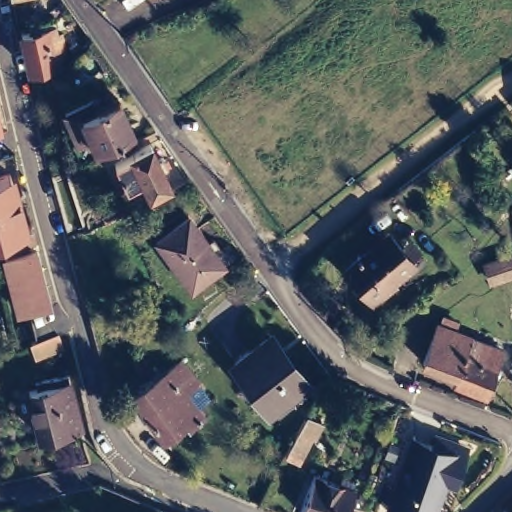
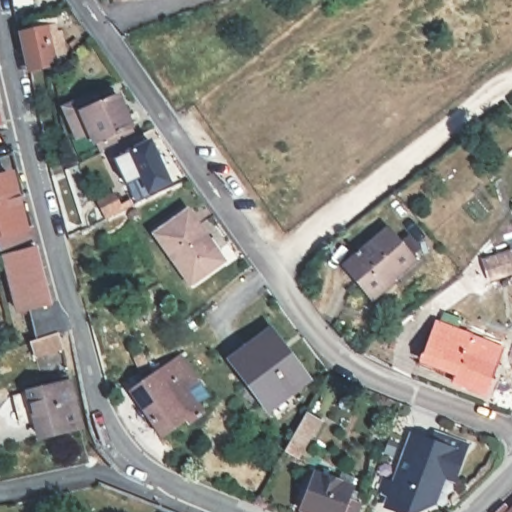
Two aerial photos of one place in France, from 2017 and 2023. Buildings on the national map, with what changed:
unchanged [(70,59),(68,64),(55,66),(30,70),(22,31),(33,28),(33,22),(46,19),(49,35),(65,31),(70,59)]
unchanged [(89,84),(92,94),(115,85),(128,118),(91,133),(93,139),(75,147),(69,129),(75,126),(64,94),(89,84)]
unchanged [(0,127),(0,90),(7,124),(0,127)]
unchanged [(151,135),(158,150),(163,148),(168,158),(163,161),(170,175),(149,186),(142,171),(126,179),(115,153),(151,135)]
unchanged [(18,214),(27,212),(31,225),(0,237),(0,162),(5,160),(18,214)]
unchanged [(106,197),(120,191),(126,206),(113,214),(106,197)]
unchanged [(190,201),(224,254),(191,275),(158,223),(190,201)]
unchanged [(393,230),(416,258),(373,296),(349,267),(393,230)]
unchanged [(51,304),(17,313),(0,243),(35,234),(51,304)]
unchanged [(512,243),(512,261),(490,267),(486,251),(512,243)]
unchanged [(441,313),(505,337),(487,383),(455,371),(458,364),(426,351),(441,313)]
unchanged [(268,325),(300,372),(265,398),(231,351),(268,325)]
unchanged [(65,327),(68,342),(41,352),(36,338),(65,327)]
unchanged [(180,347),(200,369),(197,371),(210,389),(197,398),(203,407),(188,418),(186,416),(163,432),(130,384),(180,347)]
unchanged [(81,429),(40,439),(28,394),(36,392),(35,384),(68,376),(81,429)]
unchanged [(306,422),(319,429),(315,437),(303,461),(289,454),(302,431),(306,422)]
unchanged [(441,432),(470,444),(454,483),(443,480),(437,505),(419,512),(390,512),(383,509),(410,428),(438,439),(441,432)]
unchanged [(336,483),(339,476),(352,482),(350,489),(353,490),(348,502),(361,507),(359,512),(298,512),(313,475),(336,483)]
unchanged [(508,506),(512,502),(512,512),(493,512),(503,502),(508,506)]

